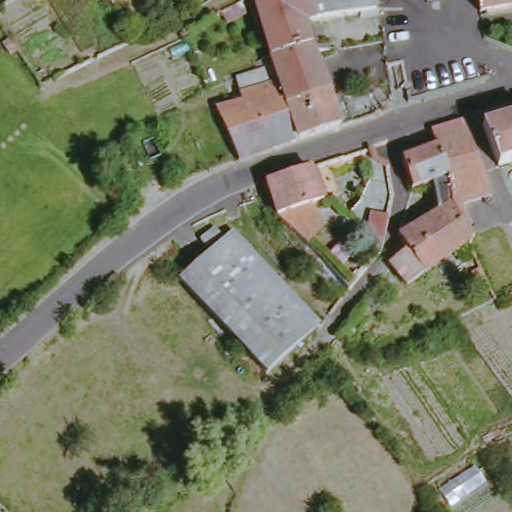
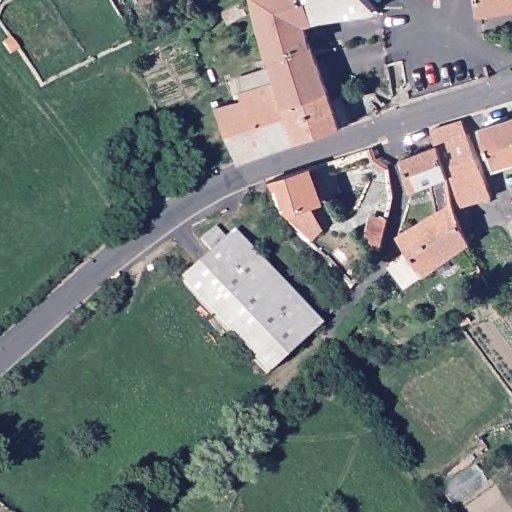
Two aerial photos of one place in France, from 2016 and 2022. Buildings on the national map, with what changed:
unchanged [(260,0),(373,0),(374,0),(305,23),(314,44),(276,53),(260,0)]
unchanged [(483,0),(512,0),(512,8),(485,13),(483,0)]
unchanged [(317,51),(332,89),(290,103),(285,82),(276,53),(314,44),(317,51)]
unchanged [(302,141),(245,160),(222,107),(270,93),(285,82),(290,103),(302,141)]
unchanged [(337,102),(347,99),(357,123),(347,126),(302,141),(290,103),(332,89),(337,102)]
unchanged [(504,164),(489,125),(512,117),(512,161),(504,164)]
unchanged [(419,250),(410,231),(414,228),(445,209),(438,181),(420,190),(412,158),(430,151),(446,145),(442,130),(474,119),(487,156),(502,196),(466,209),(477,244),(435,273),(417,285),(402,263),(419,250)]
unchanged [(327,200),(317,208),(327,228),(311,244),(285,216),(272,182),(315,168),(327,200)]
unchanged [(208,259),(215,253),(205,243),(219,229),(229,240),(238,233),(324,328),(297,353),(208,259)]
unchanged [(273,375),(185,278),(208,259),(297,353),(273,375)]

